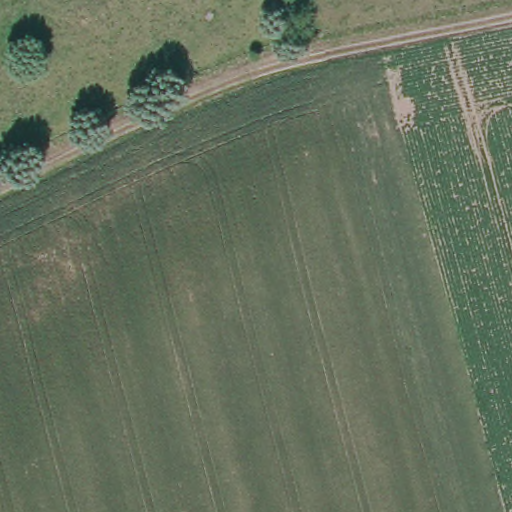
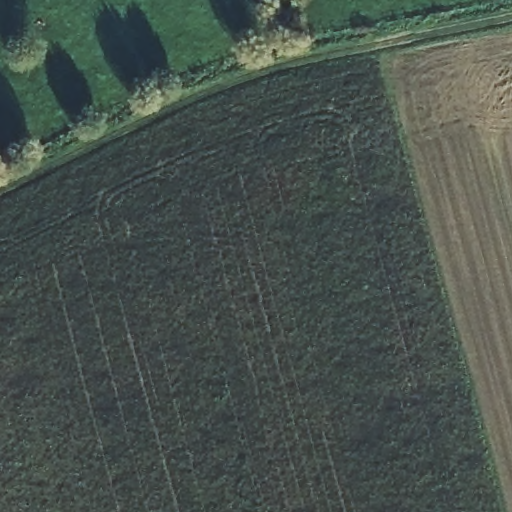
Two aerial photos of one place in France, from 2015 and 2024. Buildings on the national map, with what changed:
[]

